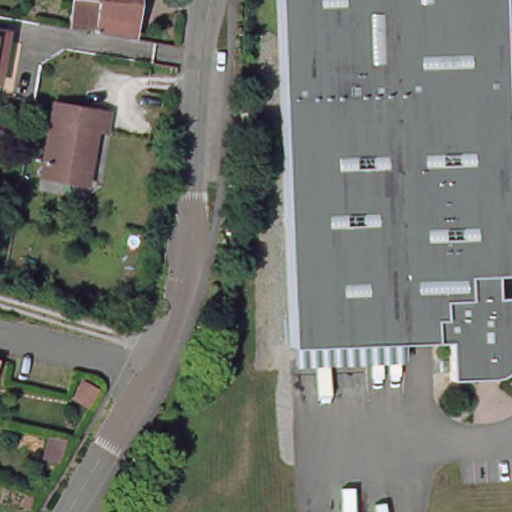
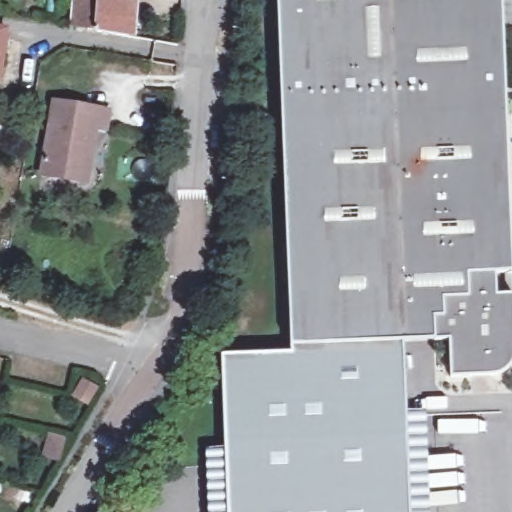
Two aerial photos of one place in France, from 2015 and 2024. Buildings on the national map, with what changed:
unchanged [(97,30),(69,28),(72,1),(99,3),(99,0),(130,0),(127,40),(98,35),(97,30)]
unchanged [(509,346),(508,352),(507,356),(505,359),(504,361),(502,363),(500,365),(499,367),(497,368),(495,369),(492,371),(490,372),(487,372),(485,373),(482,373),(443,375),(442,337),(284,343),(271,0),(497,0),(506,272),(507,294),(509,346)]
unchanged [(2,27),(0,36),(0,27),(2,27)]
unchanged [(77,191),(42,185),(54,112),(109,121),(106,140),(95,138),(90,169),(87,193),(77,191)]
new [(292,342),(402,339),(407,512),(227,512),(221,355),(292,355),(292,342)]
unchanged [(87,402),(71,393),(82,374),(98,383),(87,402)]
unchanged [(65,434),(60,458),(42,455),(49,430),(65,434)]
unchanged [(27,504),(19,499),(26,487),(34,492),(27,504)]

